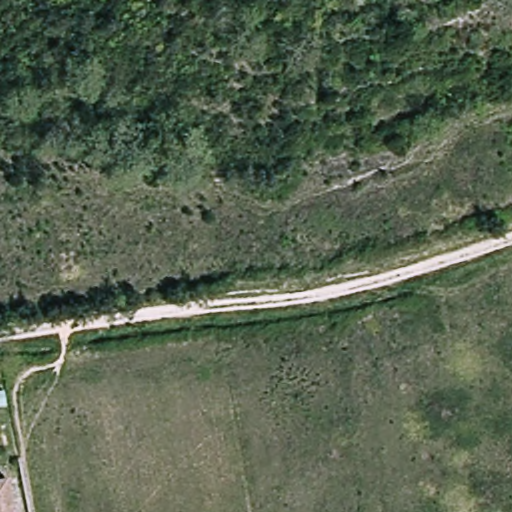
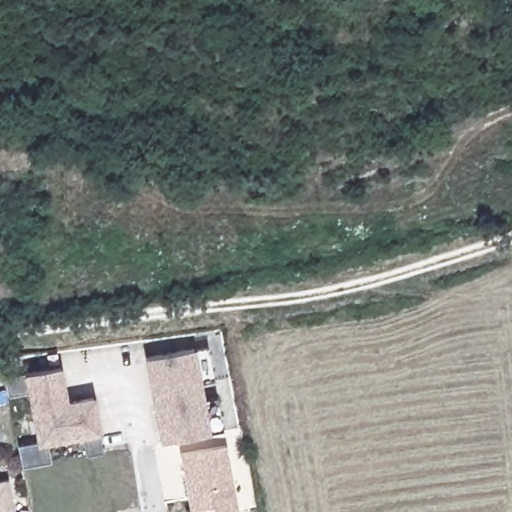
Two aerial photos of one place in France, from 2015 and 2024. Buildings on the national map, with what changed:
new [(196,350),(209,348),(215,380),(202,382),(205,400),(217,398),(223,431),(212,433),(160,442),(145,358),(196,350)]
new [(105,452),(86,457),(80,437),(47,443),(51,461),(22,467),(18,448),(37,443),(27,392),(10,397),(6,379),(25,374),(62,367),(68,401),(95,396),(102,434),(105,452)]
new [(238,510),(228,512),(213,512),(212,505),(190,509),(180,453),(227,445),(238,510)]
unchanged [(12,512),(0,512),(0,482),(3,482),(12,512)]

